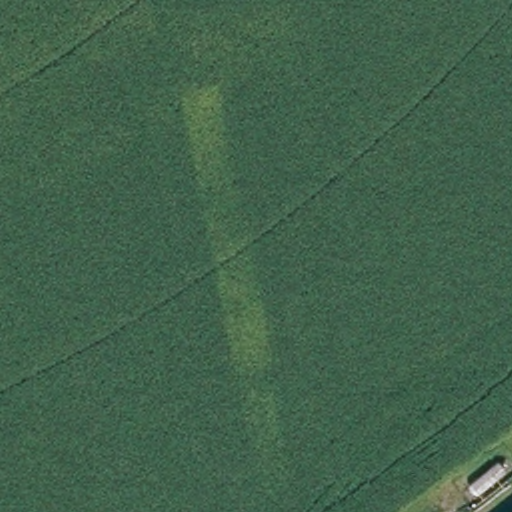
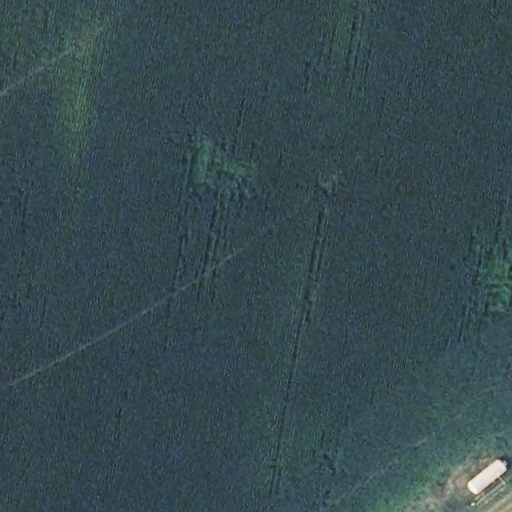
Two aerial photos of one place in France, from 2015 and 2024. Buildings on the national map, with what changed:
unchanged [(512,510),(512,512),(510,512),(512,510)]

